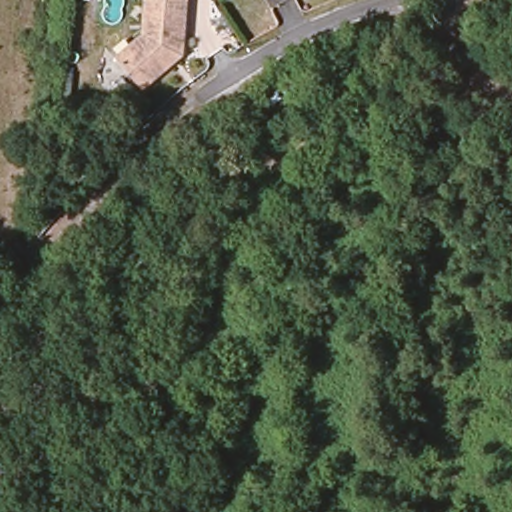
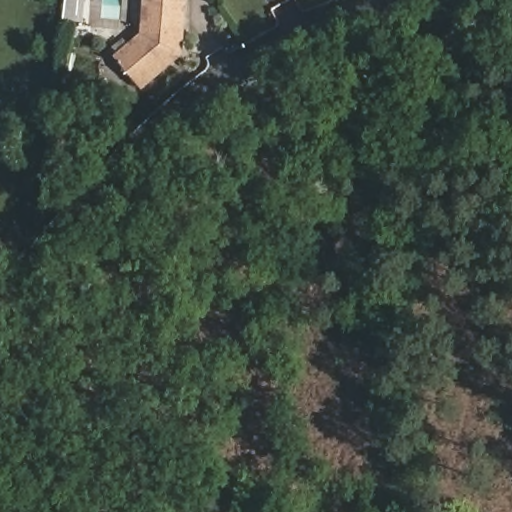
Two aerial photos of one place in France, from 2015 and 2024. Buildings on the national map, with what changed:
unchanged [(184,7),(178,58),(135,91),(109,62),(138,38),(143,3),(143,0),(185,0),(184,7)]

